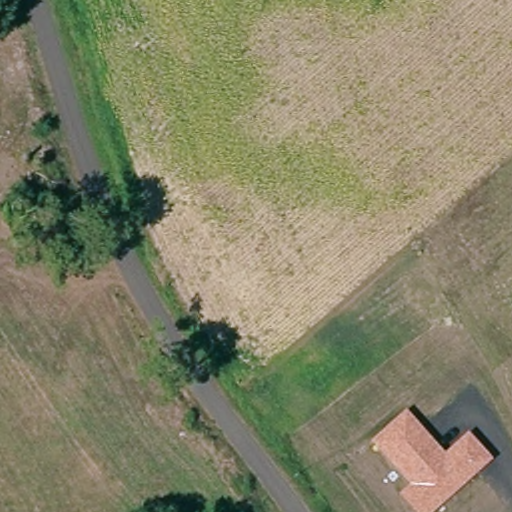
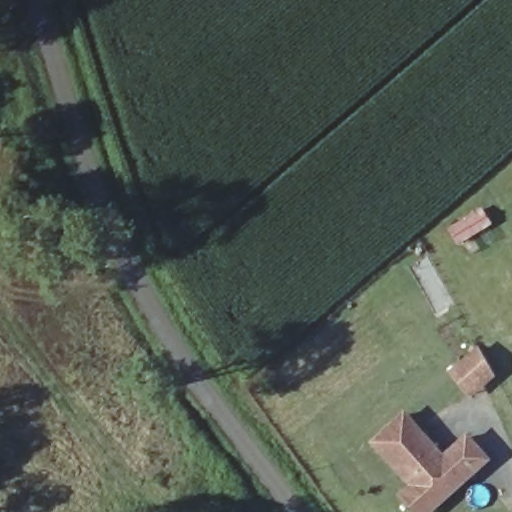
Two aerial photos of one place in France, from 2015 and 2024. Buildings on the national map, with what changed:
new [(472,399),(450,373),(479,348),(497,376),(472,399)]
unchanged [(443,454),(468,432),(492,460),(434,512),(415,512),(400,493),(409,484),(373,440),(406,412),(443,454)]

